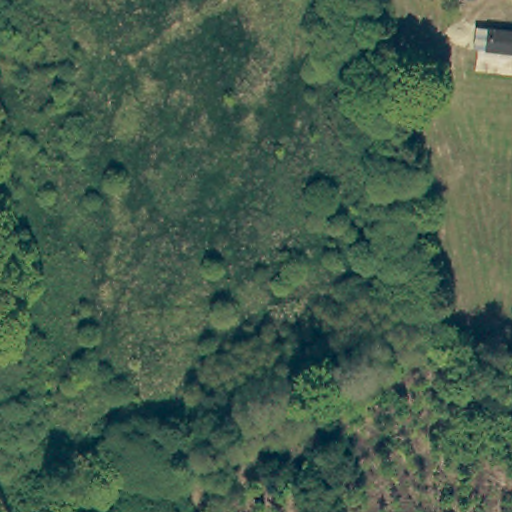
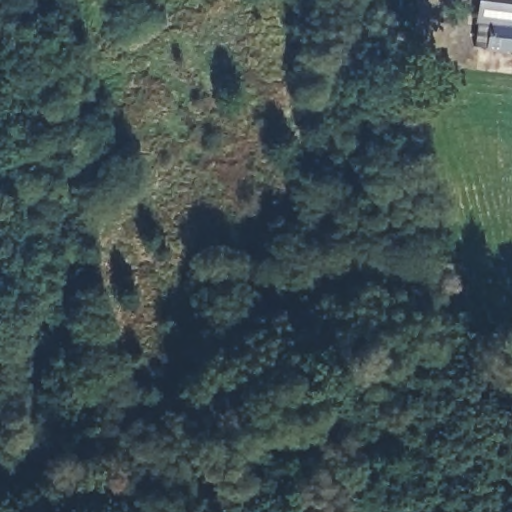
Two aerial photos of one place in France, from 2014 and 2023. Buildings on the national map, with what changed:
unchanged [(512,29),(512,55),(479,51),(483,26),(512,29)]

